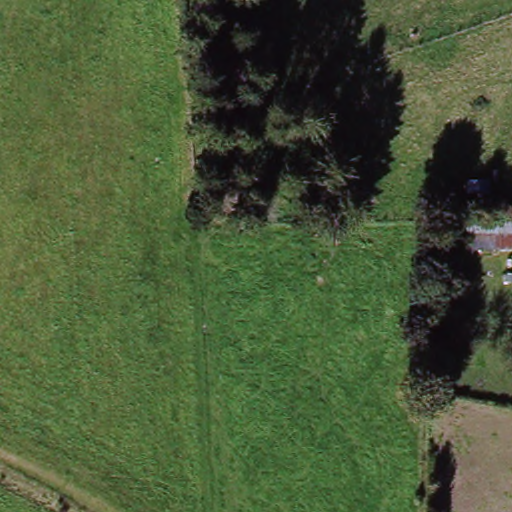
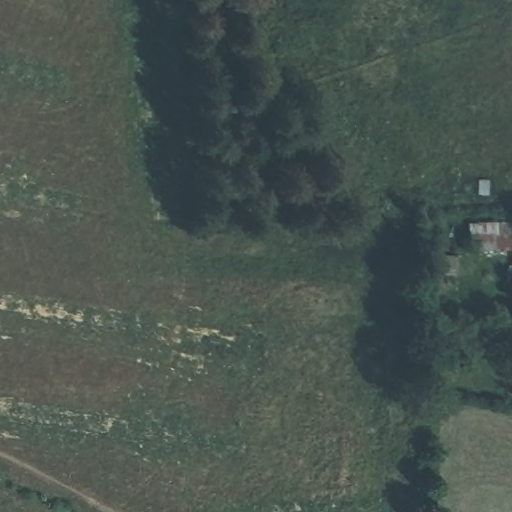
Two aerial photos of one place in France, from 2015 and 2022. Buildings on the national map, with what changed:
unchanged [(470,230),(493,229),(512,228),(512,245),(494,246),(471,247),(470,230)]

